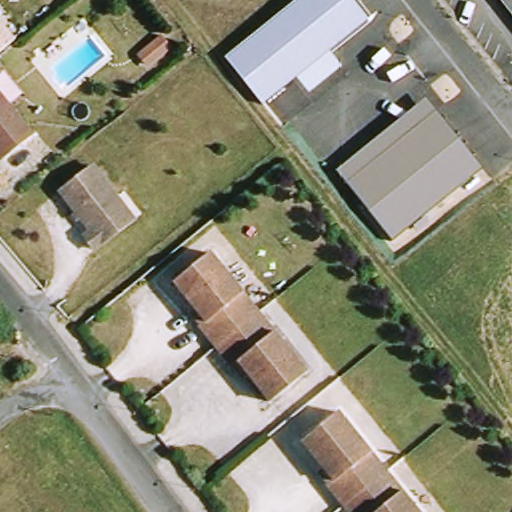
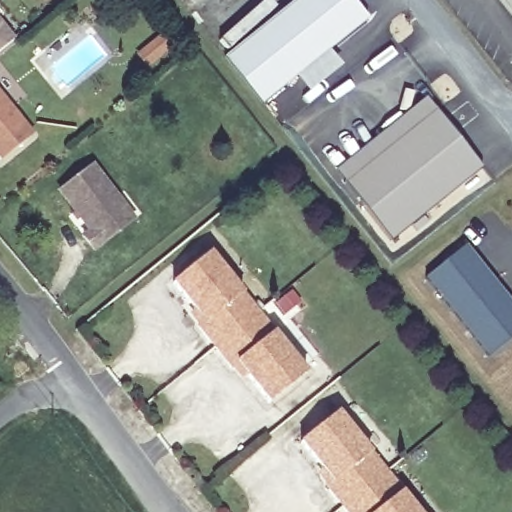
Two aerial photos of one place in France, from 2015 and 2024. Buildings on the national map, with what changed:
unchanged [(294,0),(354,0),(370,19),(263,102),(225,55),(294,0)]
unchanged [(512,0),(512,12),(503,0),(512,0)]
unchanged [(19,42),(0,58),(0,19),(19,42)]
unchanged [(40,139),(8,164),(0,154),(0,89),(40,139)]
unchanged [(336,171),(426,100),(436,112),(441,117),(482,170),(392,242),(350,190),(345,183),(336,171)]
unchanged [(95,165),(135,220),(95,249),(85,235),(91,230),(61,190),(95,165)]
new [(512,306),(512,340),(489,358),(426,279),(466,247),(512,306)]
unchanged [(177,278),(215,249),(311,372),(272,400),(241,360),(235,365),(202,323),(209,319),(177,278)]
unchanged [(423,512),(352,512),(332,486),(338,482),(305,440),(342,410),(423,512)]

